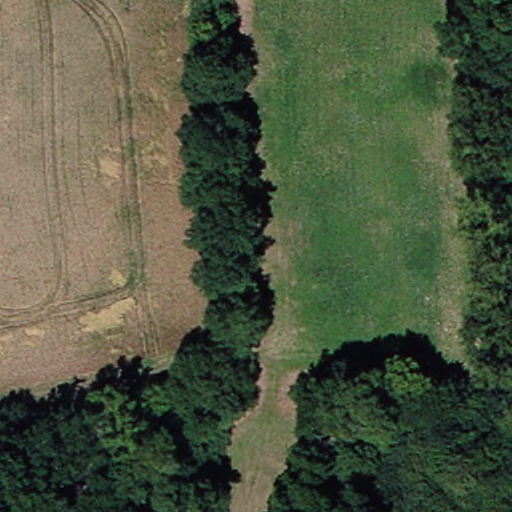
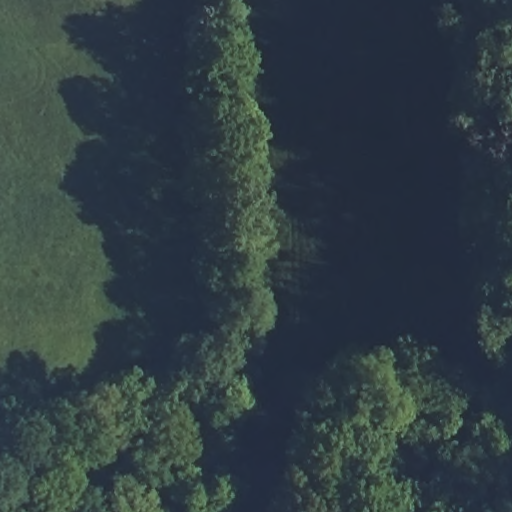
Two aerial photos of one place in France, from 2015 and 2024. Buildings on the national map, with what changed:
[]

